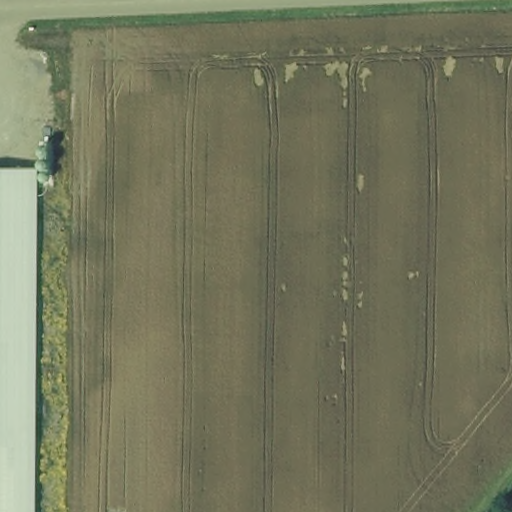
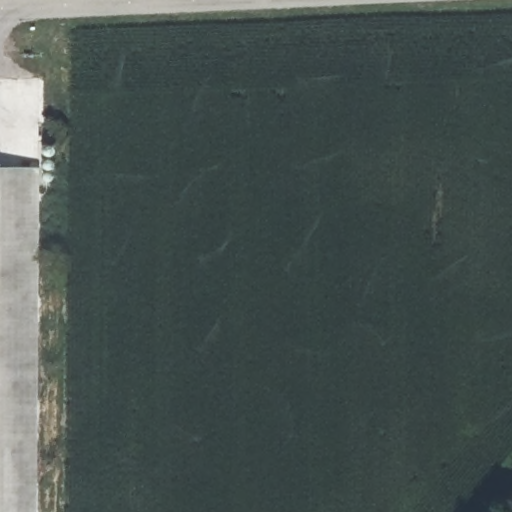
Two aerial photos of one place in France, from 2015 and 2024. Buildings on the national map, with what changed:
unchanged [(40,169),(36,512),(0,512),(0,168),(40,169)]

